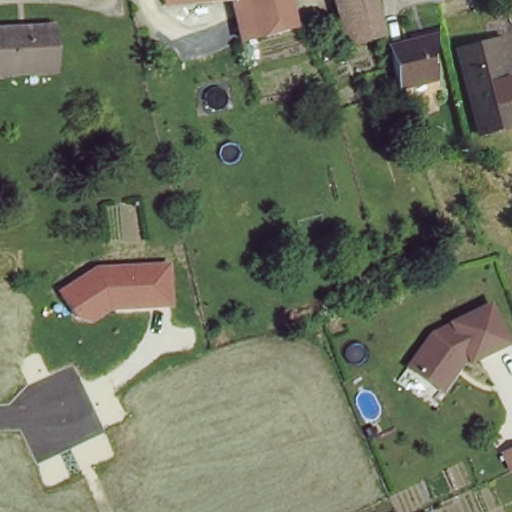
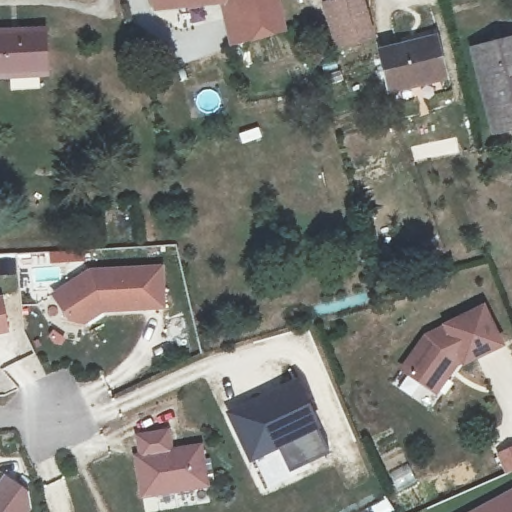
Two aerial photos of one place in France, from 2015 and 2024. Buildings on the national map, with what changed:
unchanged [(220,11),(155,15),(154,0),(276,0),(278,9),(278,12),(283,37),(231,49),(220,11)]
unchanged [(370,21),(376,42),(340,54),(327,10),(363,1),(370,21)]
unchanged [(48,35),(50,76),(0,79),(0,37),(48,35)]
unchanged [(385,52),(440,39),(449,79),(393,90),(385,52)]
unchanged [(512,42),(512,128),(501,131),(480,50),(512,42)]
unchanged [(102,313),(85,325),(67,321),(50,294),(87,268),(162,266),(165,309),(102,313)]
new [(2,293),(10,332),(0,334),(0,294),(2,293)]
unchanged [(460,361),(443,393),(396,370),(425,330),(484,302),(501,345),(460,361)]
new [(226,412),(297,377),(318,428),(329,453),(288,472),(279,451),(249,462),(226,412)]
new [(201,442),(209,486),(142,498),(134,457),(138,456),(134,434),(169,428),(172,447),(201,442)]
new [(30,492),(32,507),(29,512),(0,512),(0,481),(6,473),(30,492)]
new [(512,512),(481,512),(512,495),(512,512)]

